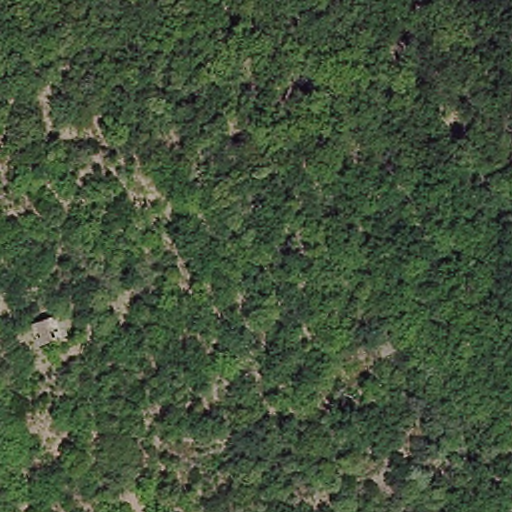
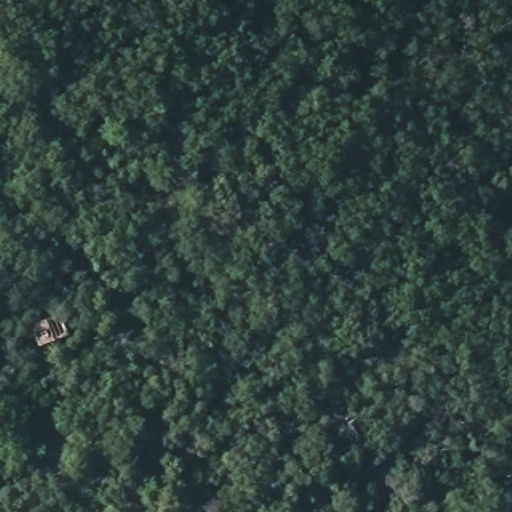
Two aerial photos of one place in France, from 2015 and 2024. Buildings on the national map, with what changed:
unchanged [(54,318),(63,334),(30,348),(28,341),(25,329),(50,318),(54,318)]

